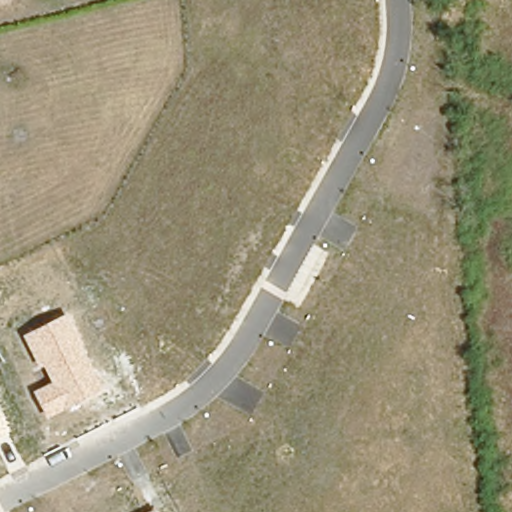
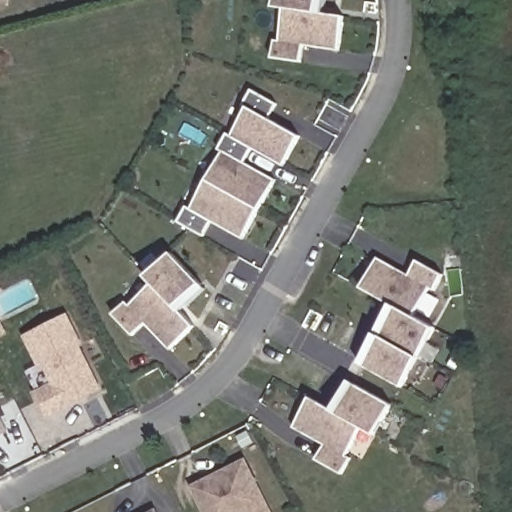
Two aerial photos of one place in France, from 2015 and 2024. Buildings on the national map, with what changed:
new [(0,4),(0,0),(9,0),(9,2),(0,4)]
new [(344,17),(337,50),(302,46),(300,62),(272,59),(274,40),(280,41),(281,10),(274,8),(276,0),(324,0),(322,13),(344,17)]
new [(267,117),(299,136),(282,165),(250,147),(243,162),(274,179),(242,237),(210,221),(202,235),(178,221),(186,206),(190,209),(221,150),(219,149),(227,134),(231,136),(247,107),(244,102),(250,90),(276,104),(267,117)]
new [(180,311),(190,323),(194,327),(168,350),(144,323),(132,335),(114,312),(125,301),(129,305),(153,283),(146,276),(171,252),(204,288),(180,311)]
new [(374,332),(391,303),(362,286),(377,257),(408,274),(417,261),(442,275),(433,290),(428,287),(412,315),(434,327),(417,356),(401,387),(358,363),(374,332)]
new [(0,286),(2,291),(0,292),(0,286)]
unchanged [(46,417),(37,392),(51,386),(44,367),(38,369),(23,333),(70,312),(85,347),(81,352),(100,392),(46,417)]
new [(0,338),(0,320),(7,334),(0,338)]
new [(293,427),(310,396),(332,410),(347,381),(390,404),(376,433),(361,426),(345,456),(350,458),(342,473),(317,458),(325,445),(293,427)]
unchanged [(0,408),(11,431),(0,436),(0,408)]
new [(189,484),(245,457),(272,512),(203,512),(189,484)]
unchanged [(155,508),(157,512),(149,512),(155,508)]

